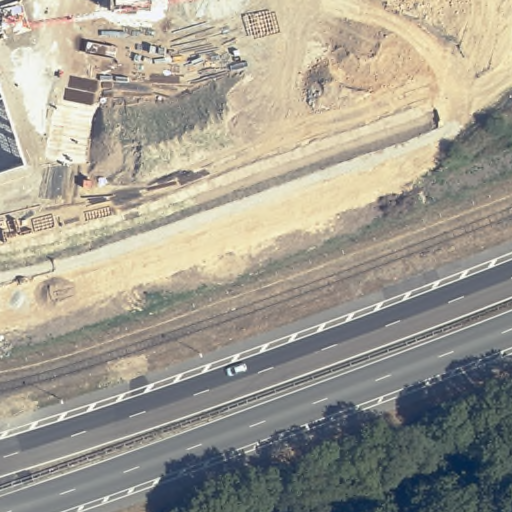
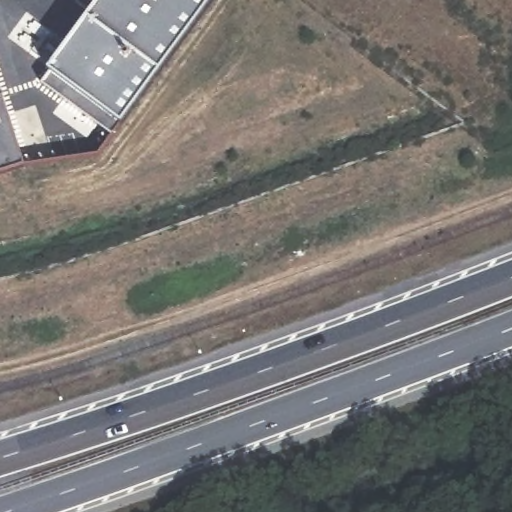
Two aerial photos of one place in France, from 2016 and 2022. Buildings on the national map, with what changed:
new [(83,0),(191,0),(105,118),(32,72),(83,0)]
unchanged [(22,164),(0,171),(0,97),(22,164)]

